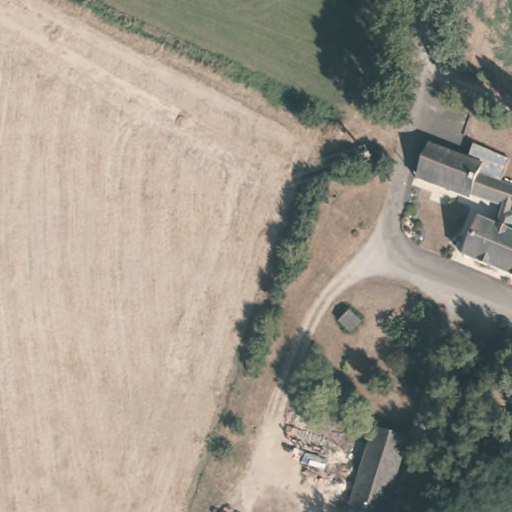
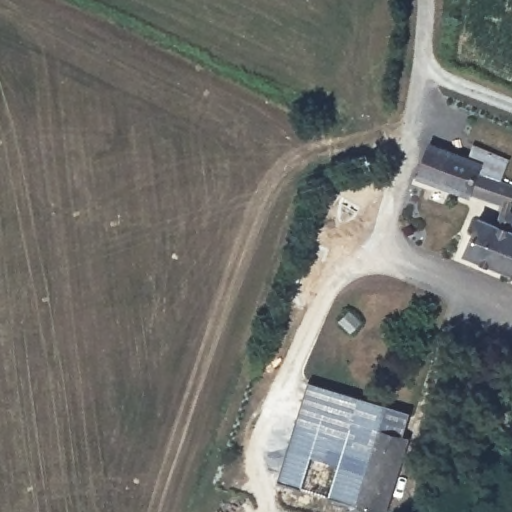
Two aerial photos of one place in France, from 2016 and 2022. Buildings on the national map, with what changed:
unchanged [(475,174),(512,189),(512,208),(494,201),(492,205),(459,192),(457,198),(410,180),(424,140),(480,161),(475,174)]
unchanged [(512,234),(512,281),(457,258),(471,216),(512,234)]
new [(377,425),(352,505),(275,481),(308,380),(413,412),(406,434),(377,425)]
unchanged [(413,436),(389,512),(373,512),(352,505),(377,425),(413,436)]

